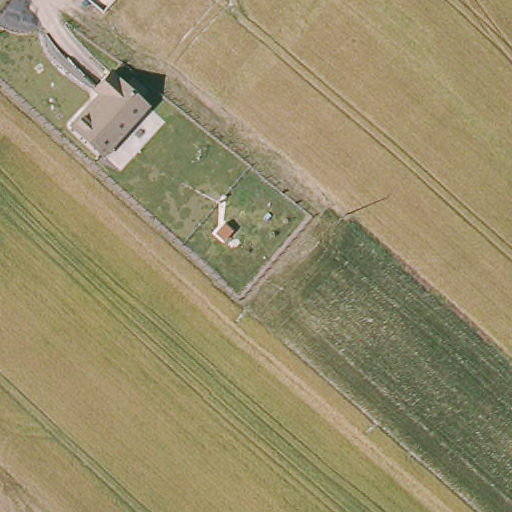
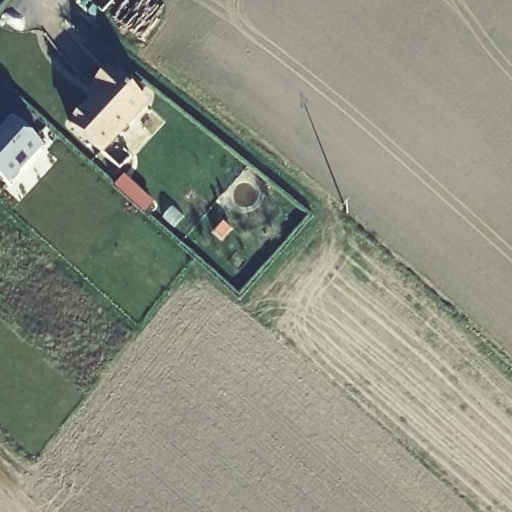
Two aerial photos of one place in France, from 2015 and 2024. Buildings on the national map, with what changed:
unchanged [(149,104),(101,156),(67,123),(95,92),(90,88),(109,66),(149,104)]
new [(45,149),(9,189),(0,181),(0,132),(11,120),(45,149)]

